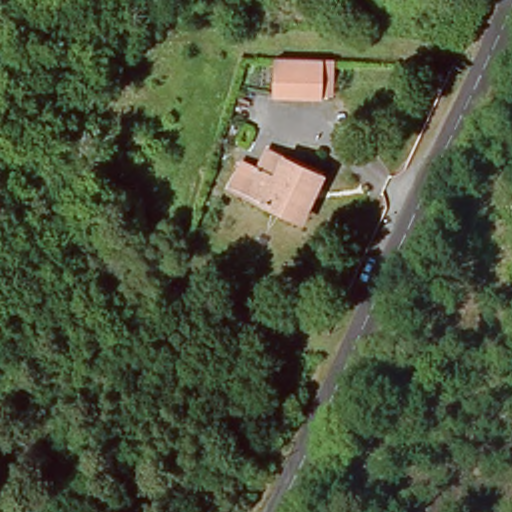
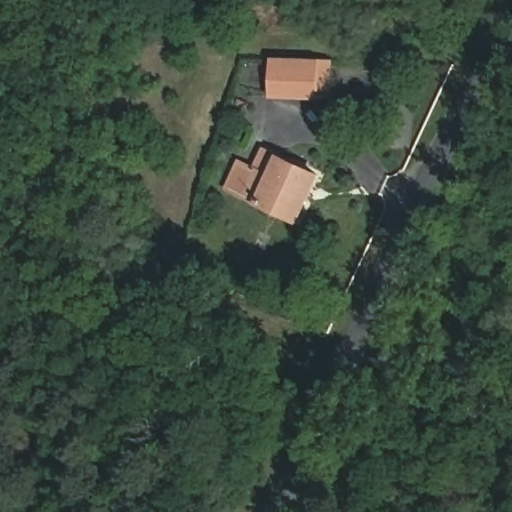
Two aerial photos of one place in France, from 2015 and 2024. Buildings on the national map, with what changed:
unchanged [(323,102),(272,101),(275,57),(323,60),(337,61),(335,97),(323,102)]
unchanged [(326,173),(302,226),(259,206),(226,190),(240,159),(258,167),(267,149),(282,155),(326,173)]

